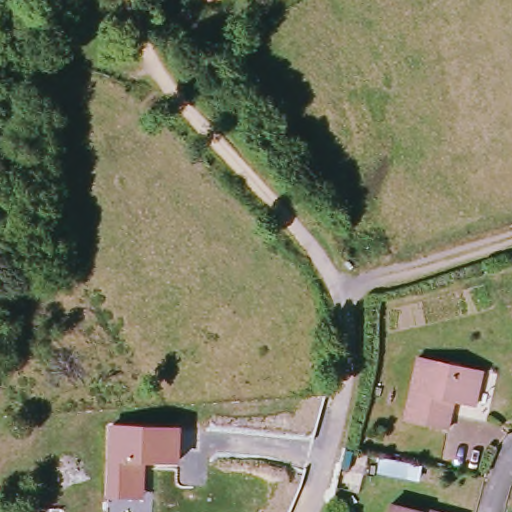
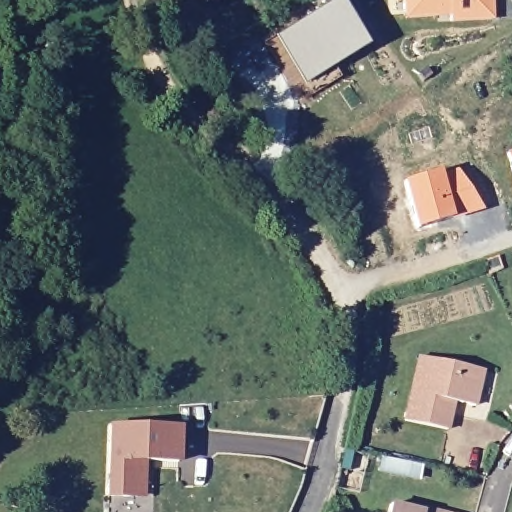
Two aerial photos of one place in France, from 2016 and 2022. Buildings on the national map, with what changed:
new [(279,34),(284,30),(332,0),(348,0),(370,37),(374,42),(309,82),(279,34)]
new [(450,22),(450,16),(405,19),(404,0),(493,0),(494,20),(450,22)]
new [(512,151),(512,171),(507,153),(512,151)]
new [(405,179),(440,169),(441,174),(460,169),(485,206),(420,225),(405,179)]
unchanged [(406,421),(419,358),(483,370),(477,410),(447,404),(444,415),(450,417),(447,430),(406,421)]
unchanged [(183,425),(182,464),(147,465),(146,498),(110,497),(110,423),(183,425)]
unchanged [(384,509),(400,512),(383,512),(384,509)]
unchanged [(417,509),(433,512),(417,512),(417,509)]

